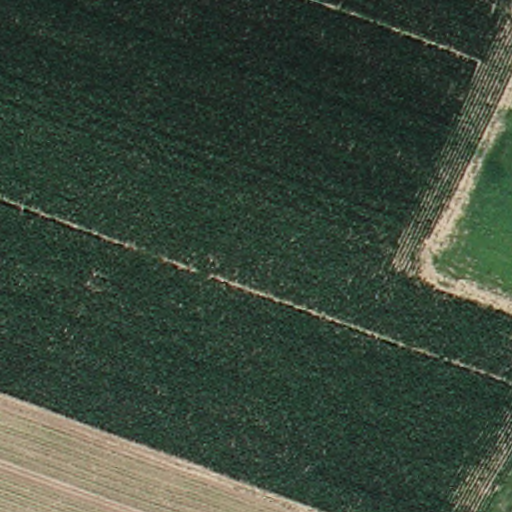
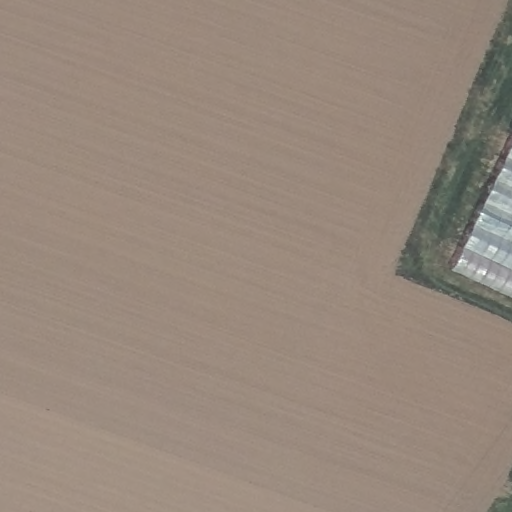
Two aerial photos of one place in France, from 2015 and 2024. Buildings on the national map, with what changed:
new [(448,272),(512,140),(512,301),(448,272)]

